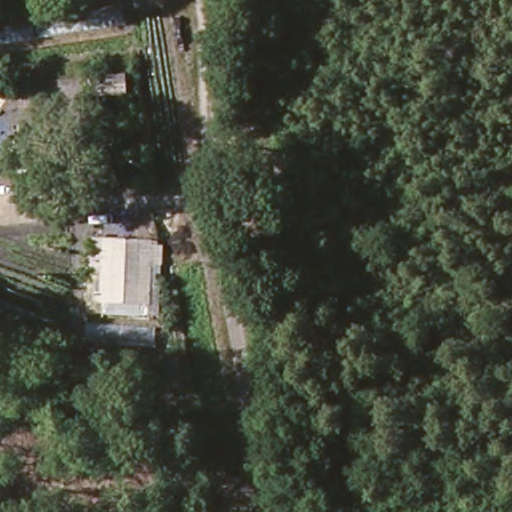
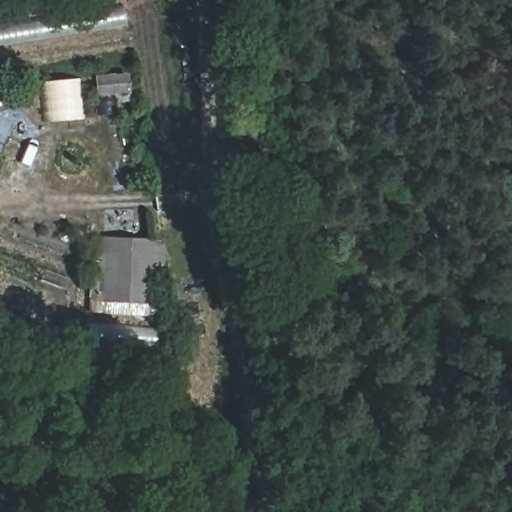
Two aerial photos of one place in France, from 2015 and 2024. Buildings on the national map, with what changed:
unchanged [(128,92),(99,94),(98,77),(127,75),(128,92)]
new [(45,82),(76,79),(80,120),(49,122),(45,82)]
unchanged [(92,311),(92,301),(95,240),(160,242),(160,245),(165,245),(164,263),(152,263),(151,303),(147,303),(146,313),(92,311)]

